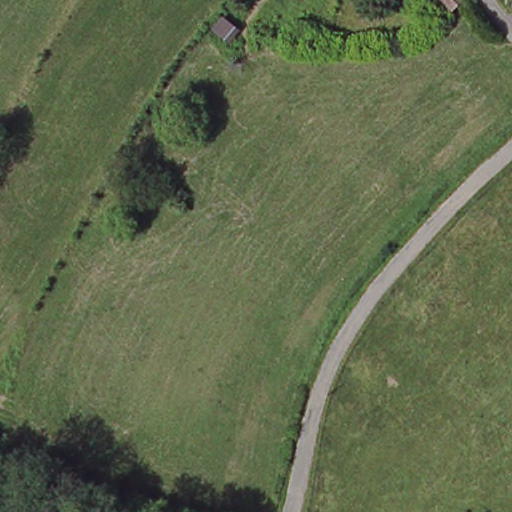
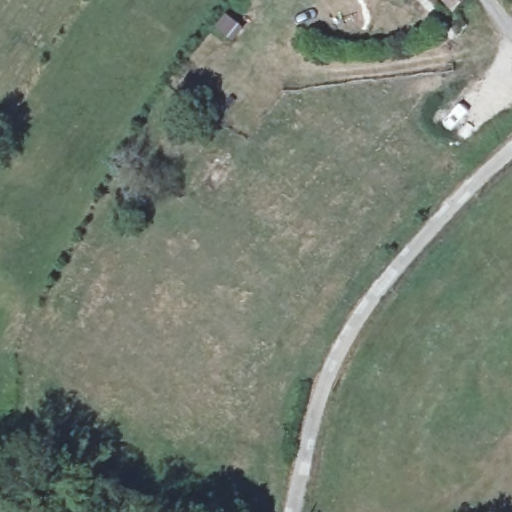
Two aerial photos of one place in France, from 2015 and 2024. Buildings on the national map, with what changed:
unchanged [(440,0),(463,0),(451,13),(440,0)]

